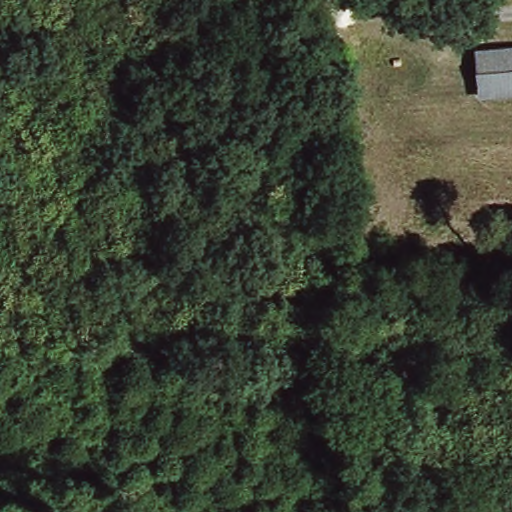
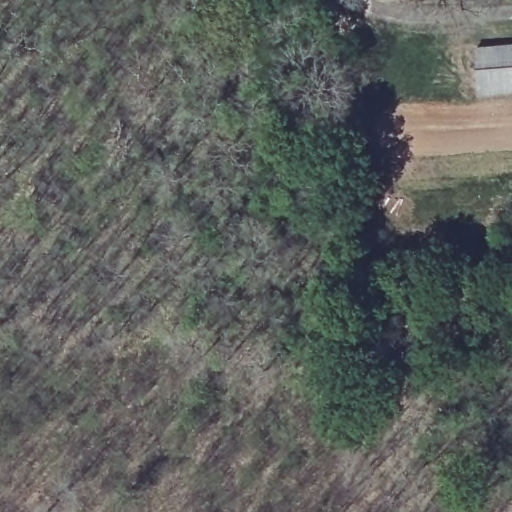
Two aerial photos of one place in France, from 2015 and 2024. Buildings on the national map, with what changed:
unchanged [(472,48),(512,45),(512,92),(475,95),(472,48)]

